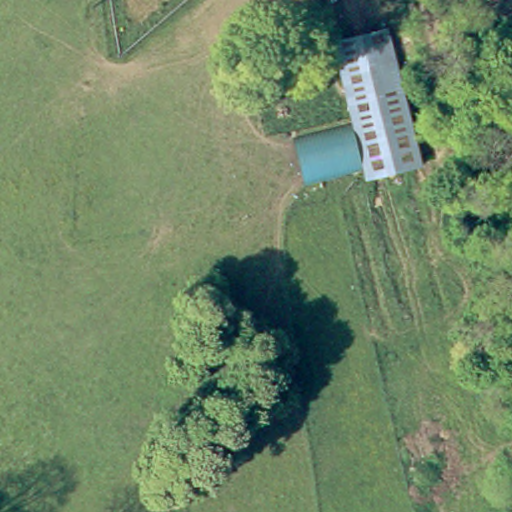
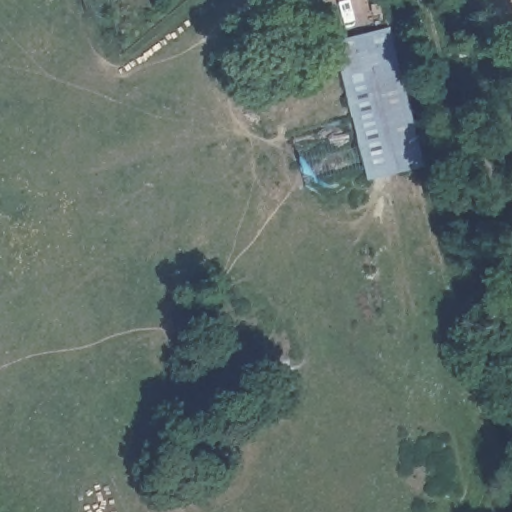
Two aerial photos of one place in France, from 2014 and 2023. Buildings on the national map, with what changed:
unchanged [(422,165),(366,181),(363,169),(306,182),(296,141),(354,127),(334,38),(388,29),(422,165)]

